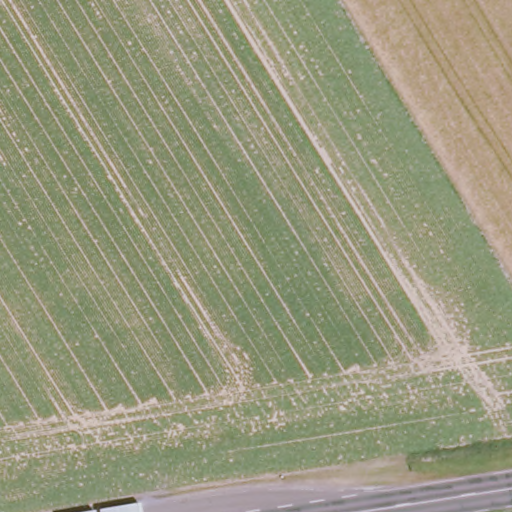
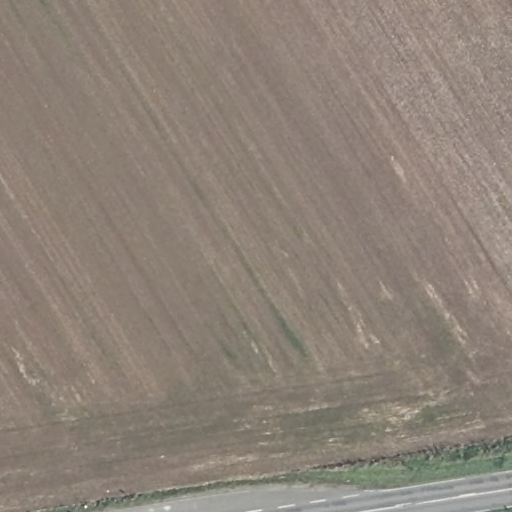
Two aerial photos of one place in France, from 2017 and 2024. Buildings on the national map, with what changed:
[]

